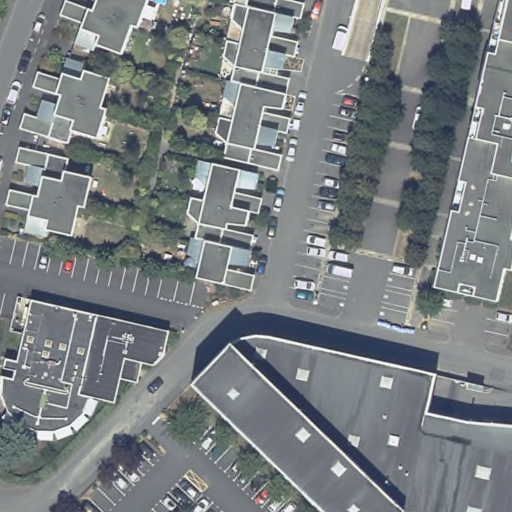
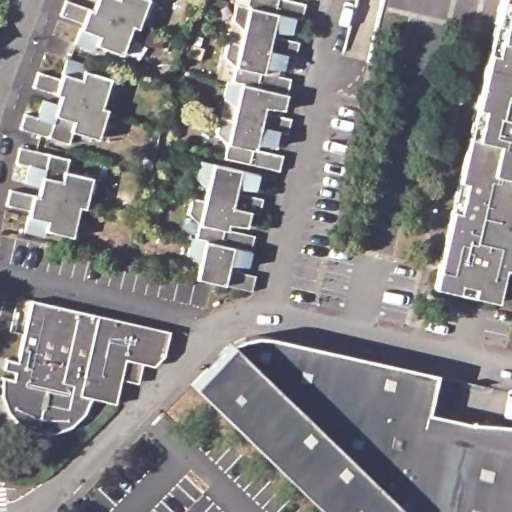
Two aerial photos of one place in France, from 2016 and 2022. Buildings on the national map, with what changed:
unchanged [(136,24),(130,22),(120,50),(94,40),(92,46),(74,39),(81,19),(59,10),(60,5),(63,0),(78,0),(91,5),(93,0),(146,0),(136,24)]
unchanged [(235,65),(224,55),(228,39),(240,42),(244,29),(232,19),(236,2),(247,5),(248,0),(297,0),(306,2),(302,18),(295,16),(291,32),(273,29),(272,35),(300,41),(296,56),(286,54),(283,69),(265,66),(264,71),(291,77),(287,93),(232,80),(235,65)]
unchanged [(435,284),(452,206),(458,177),(468,132),(475,103),(487,48),(493,18),(497,0),(512,0),(512,266),(506,265),(498,298),(474,292),(460,289),(435,284)]
unchanged [(24,108),(37,112),(42,95),(56,99),(60,90),(32,82),(37,67),(60,74),(65,53),(85,59),(84,65),(110,73),(100,102),(106,104),(96,134),(71,126),(68,139),(20,123),(24,108)]
unchanged [(283,108),(265,106),(265,111),(291,117),(288,133),(278,130),(275,145),(257,143),(255,148),(283,154),(279,170),(224,157),(227,142),(216,132),(220,116),(232,119),(236,106),(225,95),(229,79),(232,80),(287,93),(283,108)]
unchanged [(5,199),(9,184),(36,191),(39,182),(25,178),(29,160),(15,157),(19,142),(68,154),(65,166),(91,172),(84,203),(78,202),(71,231),(45,225),(44,231),(24,226),(29,205),(5,200),(5,199)]
unchanged [(255,188),(236,186),(235,191),(262,198),(258,213),(249,211),(203,200),(206,186),(195,175),(200,159),(258,173),(255,188)]
unchanged [(197,223),(186,213),(190,197),(203,200),(249,211),(245,225),(227,223),(225,228),(253,234),(250,250),(194,238),(197,223)]
unchanged [(195,277),(198,263),(186,253),(190,237),(194,238),(250,250),(246,265),(227,263),(226,268),(254,274),(250,290),(195,277)]
unchanged [(89,418),(75,430),(58,438),(40,438),(20,430),(10,416),(4,399),(5,380),(15,383),(18,375),(5,373),(8,361),(20,364),(34,303),(171,332),(166,358),(160,365),(157,367),(145,364),(140,384),(124,381),(119,405),(95,400),(89,418)]
unchanged [(324,512),(187,381),(212,357),(224,346),(238,339),(249,336),(261,335),(281,338),(436,374),(426,412),(467,422),(512,425),(512,512),(324,512)]

